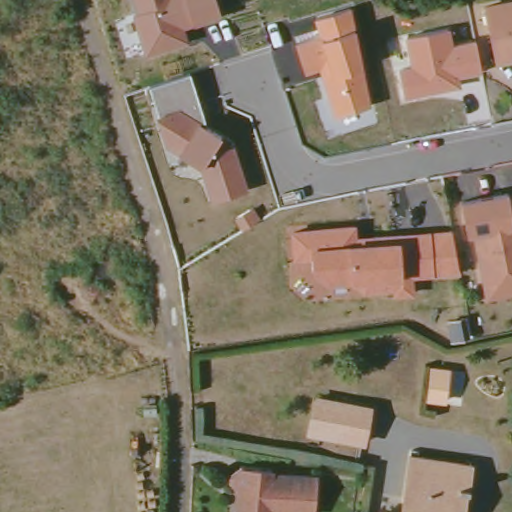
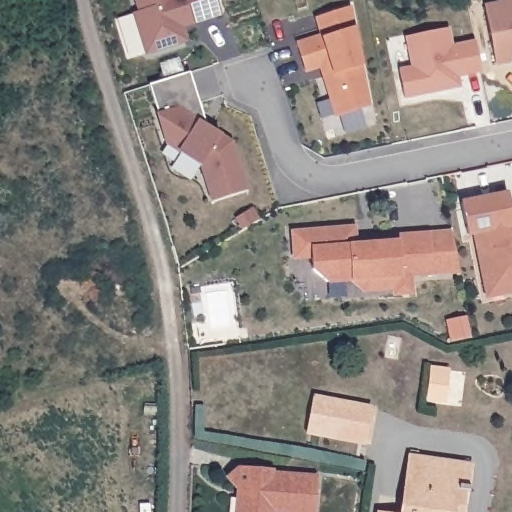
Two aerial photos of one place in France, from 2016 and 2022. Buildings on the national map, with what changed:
unchanged [(186,29),(192,43),(147,56),(135,37),(133,14),(139,11),(136,0),(218,0),(224,18),(186,29)]
unchanged [(512,61),(495,66),(482,9),(512,2),(512,57),(511,57),(512,61)]
unchanged [(355,6),(375,107),(336,119),(320,71),(305,76),(297,43),(319,36),(315,18),(355,6)]
unchanged [(452,29),(455,46),(479,41),(485,76),(461,80),(464,91),(405,102),(398,70),(412,67),(407,38),(452,29)]
unchanged [(191,72),(208,126),(235,141),(250,193),(212,203),(200,166),(168,147),(148,85),(191,72)]
unchanged [(482,267),(486,261),(480,257),(475,233),(468,234),(462,202),(510,194),(512,206),(508,211),(512,213),(512,292),(487,297),(484,280),(482,267)]
unchanged [(357,226),(360,244),(397,242),(397,234),(452,229),(462,275),(416,278),(417,295),(397,296),(395,292),(364,295),(355,284),(330,287),(313,267),(312,261),(295,262),(292,232),(357,226)]
unchanged [(309,433),(315,398),(369,409),(362,443),(309,433)]
unchanged [(405,459),(465,468),(462,493),(460,493),(457,512),(396,512),(405,459)]
unchanged [(234,490),(225,477),(235,467),(267,469),(266,474),(312,478),(310,512),(281,512),(270,511),(269,512),(232,512),(234,490)]

